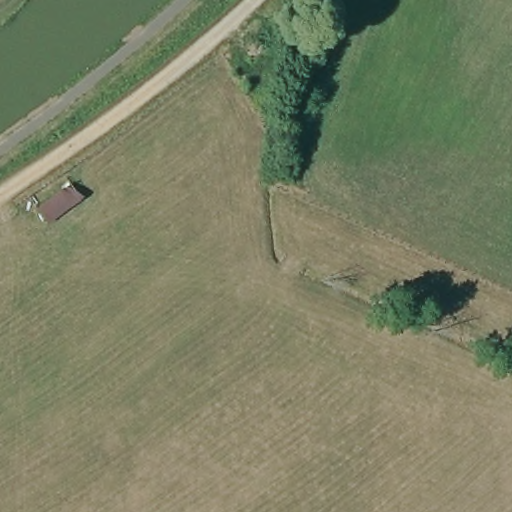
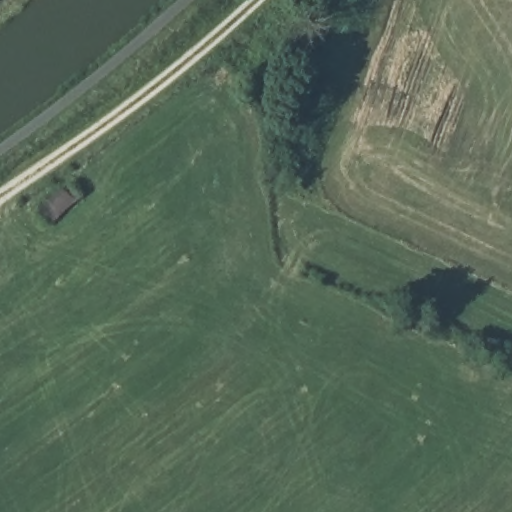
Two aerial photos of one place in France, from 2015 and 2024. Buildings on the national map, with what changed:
unchanged [(36,210),(73,183),(84,204),(48,231),(36,210)]

